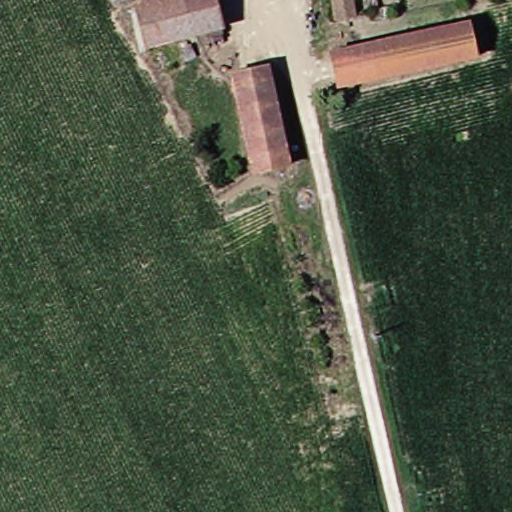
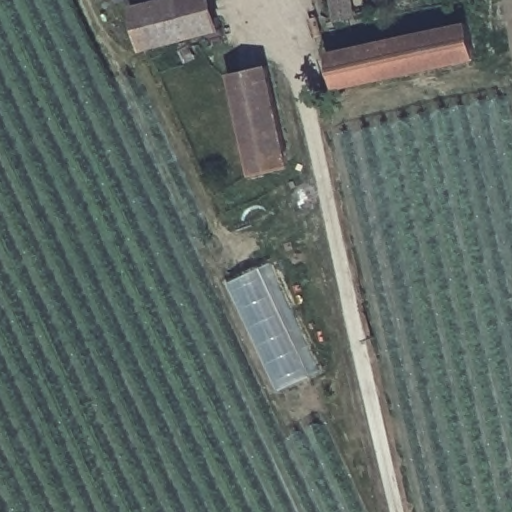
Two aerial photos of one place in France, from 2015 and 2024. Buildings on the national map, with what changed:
unchanged [(141,51),(129,15),(181,0),(203,0),(212,31),(141,51)]
unchanged [(363,16),(332,20),(329,0),(361,0),(363,16)]
unchanged [(328,53),(339,45),(454,25),(460,60),(346,84),(336,91),(328,53)]
unchanged [(282,166),(245,171),(224,75),(263,69),(282,166)]
new [(282,389),(231,282),(274,262),(324,370),(282,389)]

